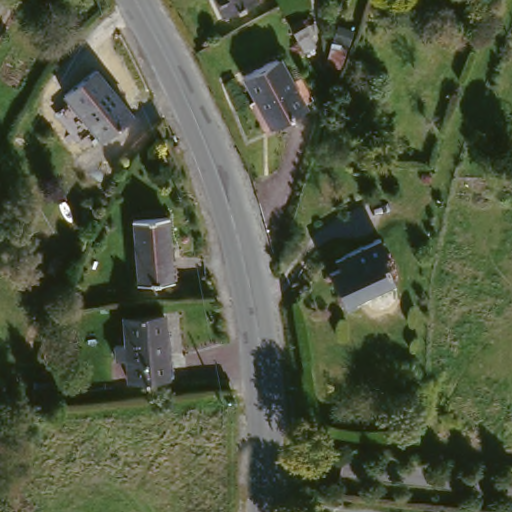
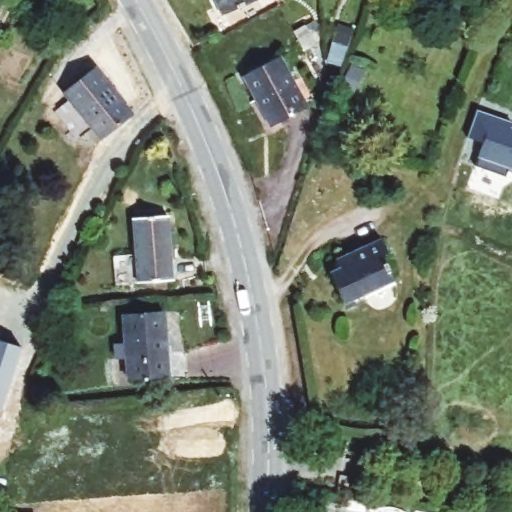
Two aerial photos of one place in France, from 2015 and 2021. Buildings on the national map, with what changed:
unchanged [(257,4),(220,21),(210,0),(255,0),(257,4)]
unchanged [(304,27),(315,46),(302,53),(292,34),(304,27)]
unchanged [(269,131),(240,79),(277,59),(304,109),(269,131)]
unchanged [(129,127),(94,144),(69,93),(103,75),(129,127)]
new [(476,110),(512,123),(510,128),(512,129),(512,169),(509,167),(506,177),(474,166),(483,143),(466,137),(476,110)]
unchanged [(139,284),(134,218),(166,216),(173,281),(139,284)]
unchanged [(379,236),(384,250),(381,255),(393,281),(366,294),(364,304),(346,312),(344,305),(325,270),(334,266),(332,258),(352,249),(379,236)]
unchanged [(130,382),(124,318),(161,314),(169,378),(130,382)]
new [(6,404),(0,403),(0,339),(24,346),(6,404)]

